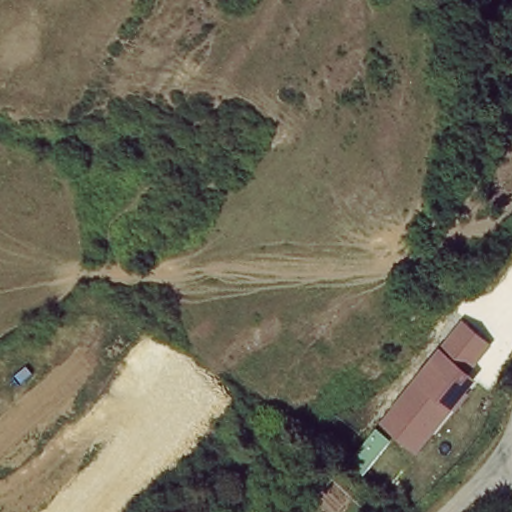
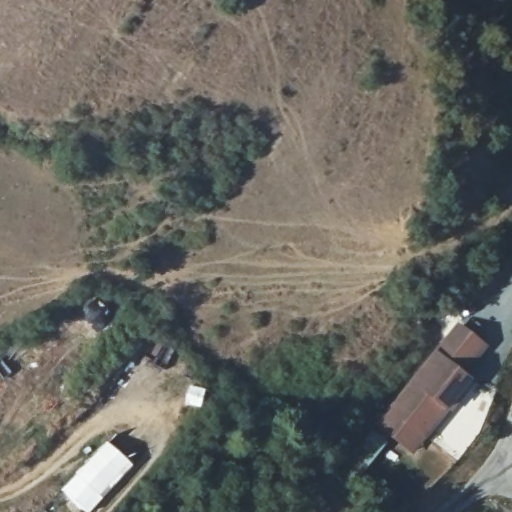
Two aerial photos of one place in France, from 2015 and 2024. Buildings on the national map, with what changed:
unchanged [(435,351),(460,323),(490,349),(464,378),(473,383),(424,442),(385,412),(435,351)]
new [(385,438),(395,447),(369,477),(359,468),(385,438)]
new [(90,512),(86,512),(63,491),(107,442),(133,466),(90,512)]

